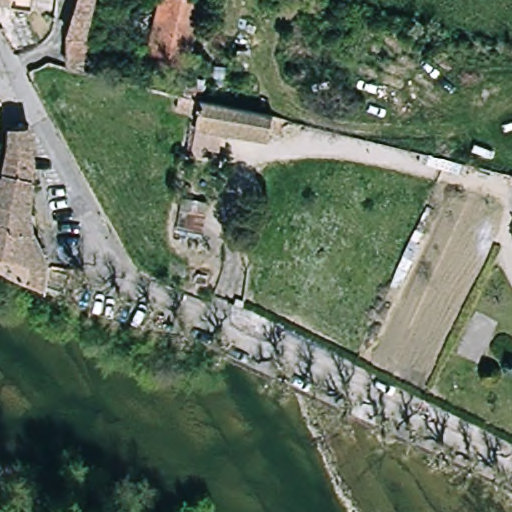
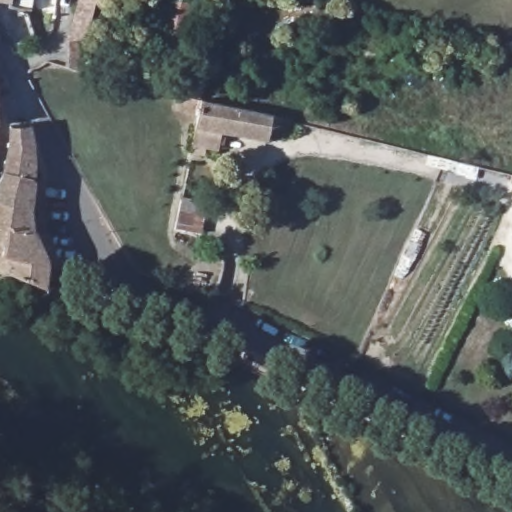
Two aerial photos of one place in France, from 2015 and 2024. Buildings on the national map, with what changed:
unchanged [(4,18),(2,7),(0,6),(0,0),(36,0),(37,12),(39,20),(28,21),(30,25),(38,46),(33,48),(25,51),(17,32),(10,17),(4,18)]
unchanged [(99,53),(97,69),(66,66),(67,38),(79,0),(96,0),(86,39),(86,52),(99,53)]
unchanged [(163,0),(190,0),(203,4),(186,72),(147,62),(163,0)]
unchanged [(239,113),(272,120),(269,134),(259,133),(257,141),(185,127),(190,102),(239,113)]
unchanged [(5,178),(15,142),(15,129),(33,128),(36,144),(37,170),(36,196),(35,210),(0,202),(0,188),(5,178)]
unchanged [(35,210),(35,215),(36,225),(38,231),(0,231),(0,202),(35,210)]
unchanged [(38,231),(40,236),(40,238),(51,265),(48,289),(46,289),(3,268),(6,259),(0,256),(0,231),(38,231)]

